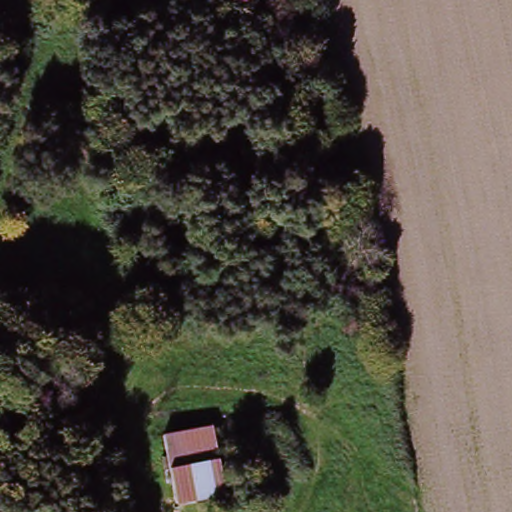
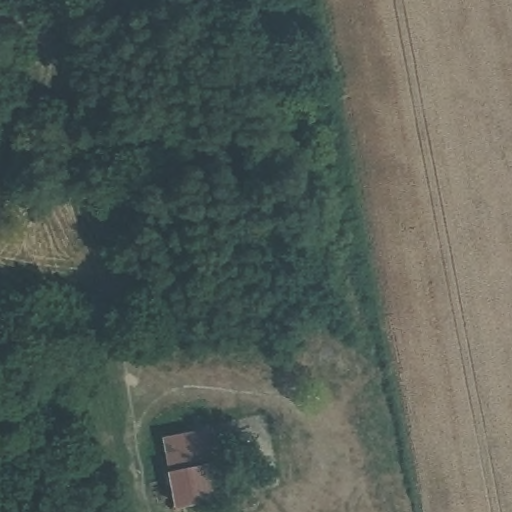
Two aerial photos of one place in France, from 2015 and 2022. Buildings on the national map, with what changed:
unchanged [(173,507),(163,439),(215,437),(224,508),(173,507)]

